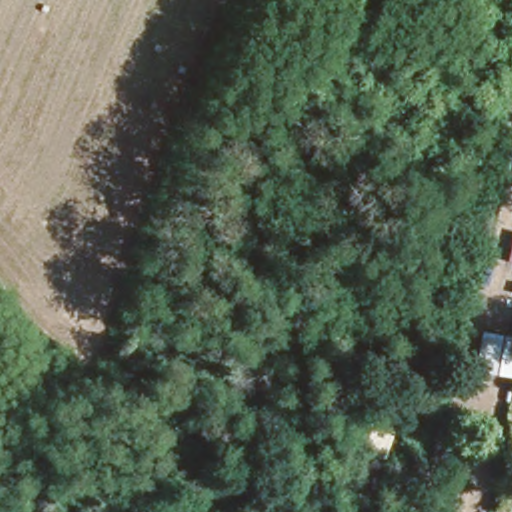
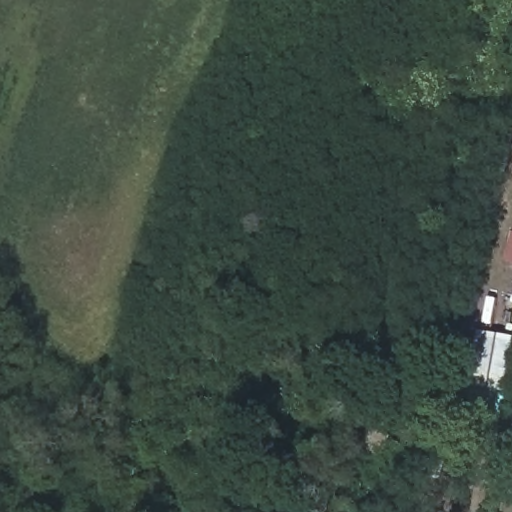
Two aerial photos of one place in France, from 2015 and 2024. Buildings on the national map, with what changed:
unchanged [(477,326),(512,333),(512,360),(509,372),(468,365),(477,326)]

